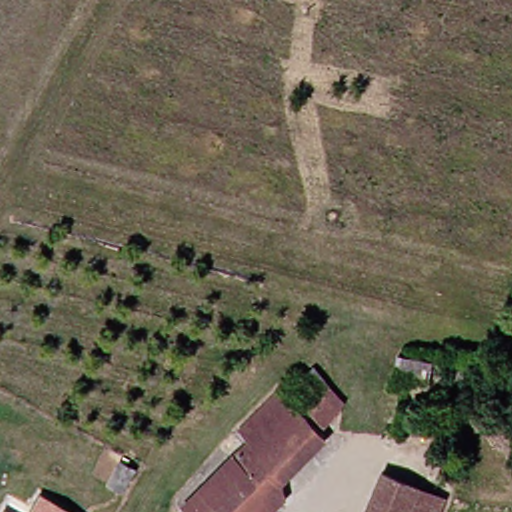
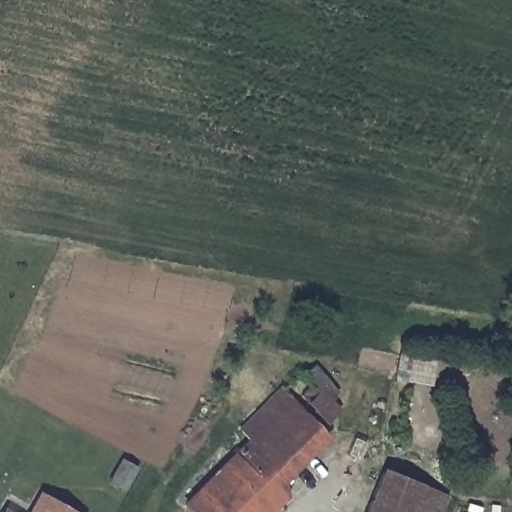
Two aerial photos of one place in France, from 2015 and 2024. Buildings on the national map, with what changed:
unchanged [(430,391),(393,385),(398,353),(434,358),(430,391)]
unchanged [(311,361),(349,398),(317,428),(279,391),(311,361)]
unchanged [(317,428),(332,442),(275,497),(254,512),(191,512),(182,503),(213,472),(244,442),(235,432),(279,391),(317,428)]
unchanged [(132,485),(118,477),(130,456),(144,463),(132,485)]
unchanged [(386,473),(452,500),(447,512),(370,512),(386,473)]
unchanged [(42,494),(76,512),(31,512),(42,494)]
unchanged [(275,497),(287,512),(254,512),(275,497)]
unchanged [(5,511),(7,512),(4,512),(5,511)]

